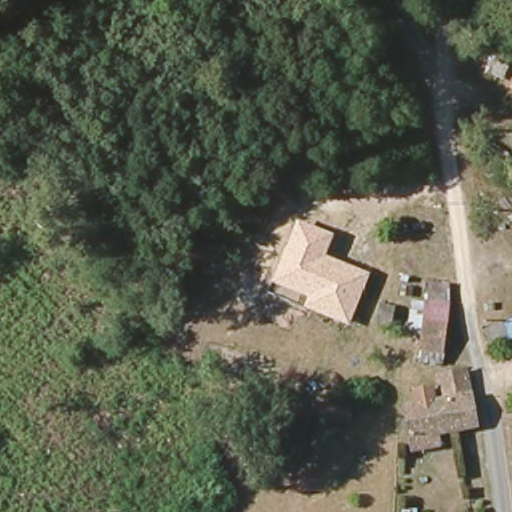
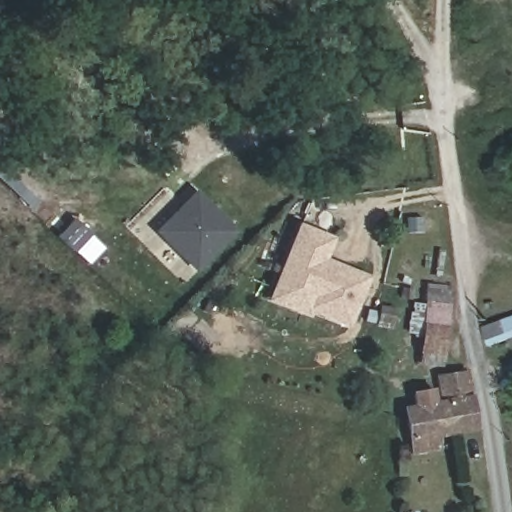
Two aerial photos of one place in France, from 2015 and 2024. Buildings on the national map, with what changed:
new [(195,274),(154,231),(196,189),(237,230),(195,274)]
unchanged [(272,284),(297,221),(334,236),(326,258),(370,275),(349,328),(304,309),(308,299),(272,284)]
unchanged [(425,301),(416,300),(417,292),(426,293),(425,301)]
unchanged [(445,362),(425,360),(431,303),(451,305),(445,362)]
unchanged [(404,331),(391,328),(395,311),(408,314),(404,331)]
unchanged [(489,343),(486,333),(512,323),(512,335),(489,343)]
unchanged [(477,426),(437,433),(439,445),(412,450),(405,408),(415,406),(412,392),(432,388),(435,402),(442,401),(438,376),(464,371),(469,396),(471,395),(477,426)]

